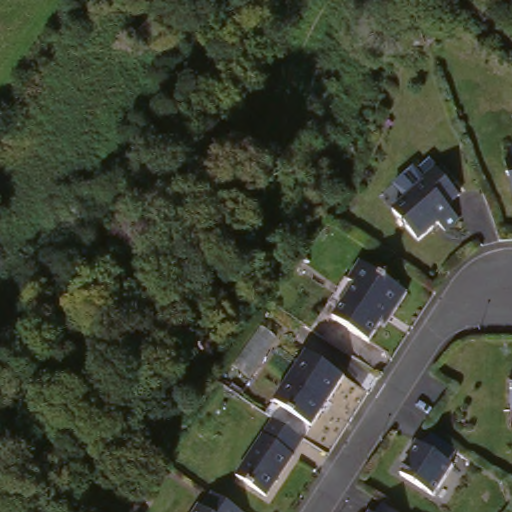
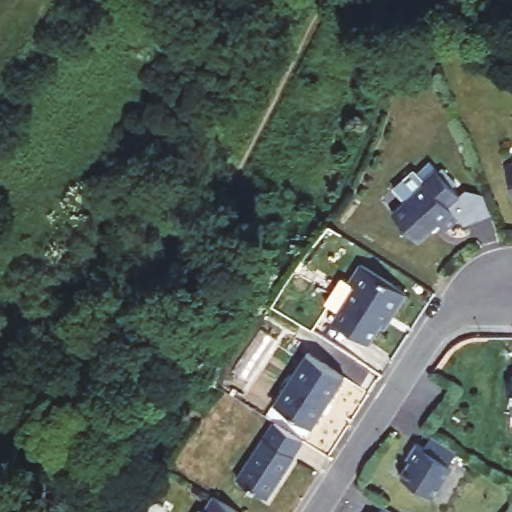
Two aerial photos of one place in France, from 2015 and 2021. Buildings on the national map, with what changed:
unchanged [(512,161),(512,184),(505,163),(512,161)]
unchanged [(457,218),(443,231),(436,223),(416,240),(391,212),(422,183),(420,181),(433,169),(458,196),(446,207),(457,218)]
unchanged [(411,295),(399,315),(395,312),(373,346),(336,322),(342,312),(332,305),(348,280),(353,283),(365,266),(411,295)]
unchanged [(274,405),(306,354),(344,378),(312,429),(274,405)]
unchanged [(510,379),(512,379),(512,415),(510,415),(510,379)]
unchanged [(295,459),(297,460),(270,503),(237,483),(272,427),(274,424),(305,444),(295,459)]
unchanged [(448,466),(452,469),(432,499),(399,476),(410,461),(406,459),(416,444),(423,449),(431,437),(456,453),(448,466)]
unchanged [(200,510),(202,512),(212,497),(237,512),(198,512),(200,510)]
unchanged [(382,508),(388,512),(379,512),(382,508)]

